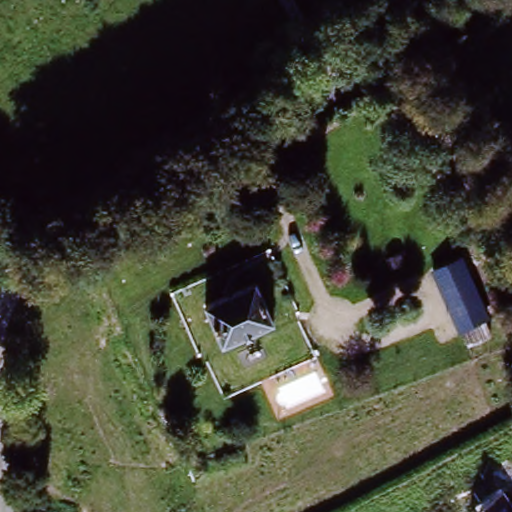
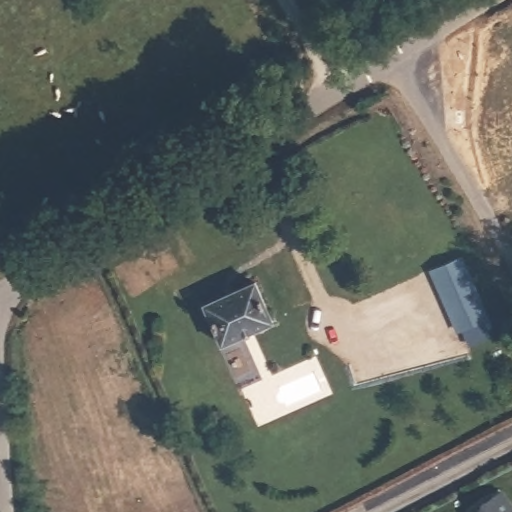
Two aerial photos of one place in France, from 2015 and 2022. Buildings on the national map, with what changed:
unchanged [(490,318),(461,332),(433,271),(463,257),(490,318)]
unchanged [(257,282),(277,326),(223,350),(206,305),(257,282)]
unchanged [(512,505),(512,512),(473,512),(502,492),(512,505)]

